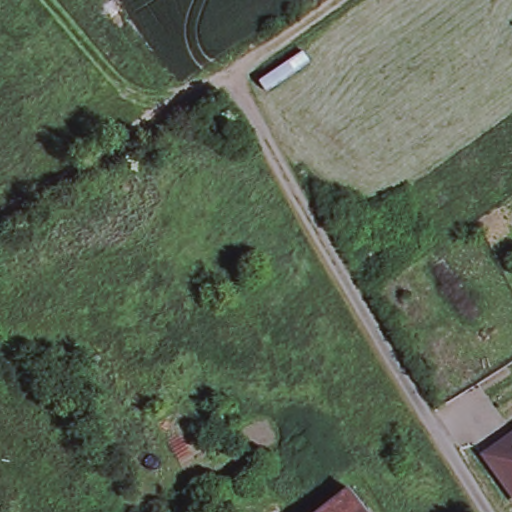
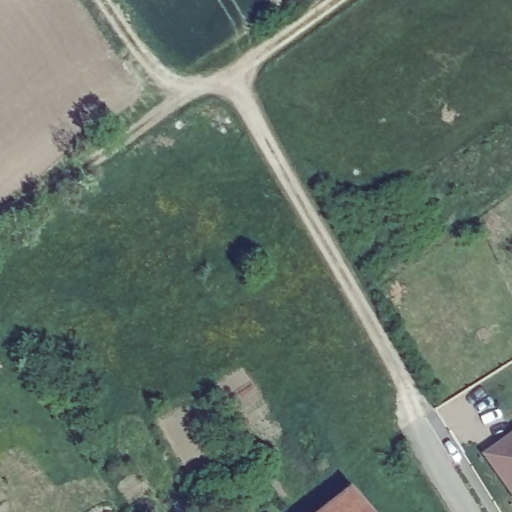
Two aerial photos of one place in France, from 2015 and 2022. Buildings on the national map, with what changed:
unchanged [(488,453),(512,437),(512,486),(488,453)]
unchanged [(347,489),(364,512),(319,512),(346,490),(347,489)]

